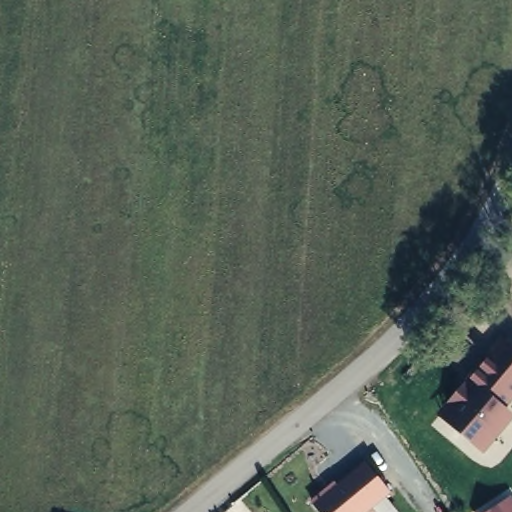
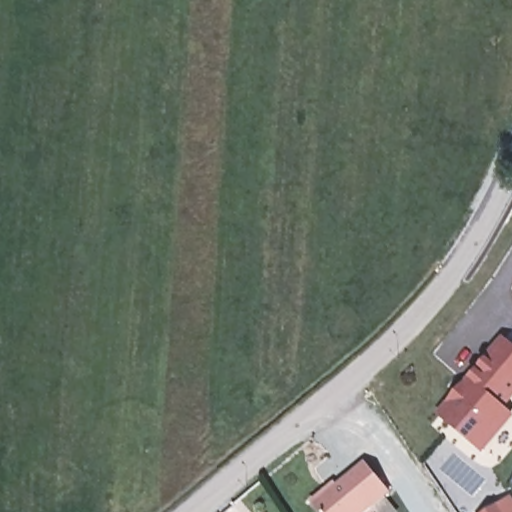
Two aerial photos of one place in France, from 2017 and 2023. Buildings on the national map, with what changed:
unchanged [(447,404),(444,401),(464,379),(467,381),(504,336),(512,342),(512,399),(506,407),(512,412),(512,416),(483,454),(438,414),(447,404)]
unchanged [(362,512),(319,512),(313,505),(363,462),(388,490),(362,512)]
unchanged [(512,501),(512,512),(486,512),(509,497),(512,501)]

